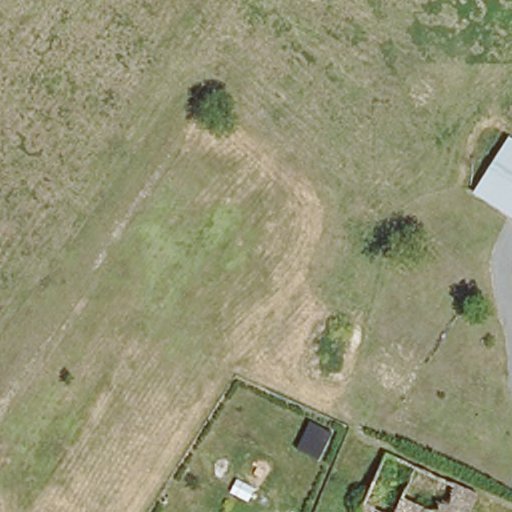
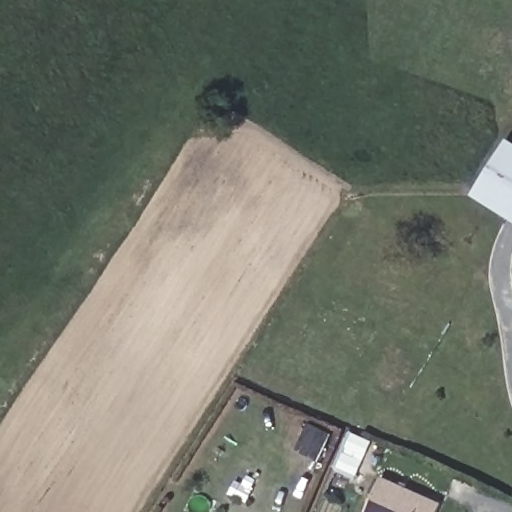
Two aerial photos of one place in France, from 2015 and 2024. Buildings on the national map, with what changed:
unchanged [(476,200),(506,144),(512,147),(512,219),(476,200)]
new [(436,512),(367,512),(382,476),(440,503),(436,512)]

